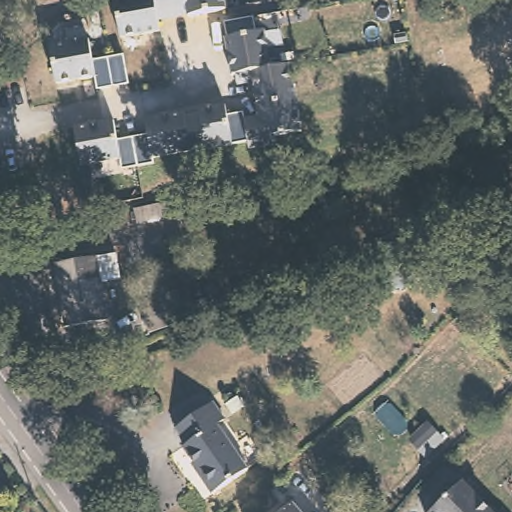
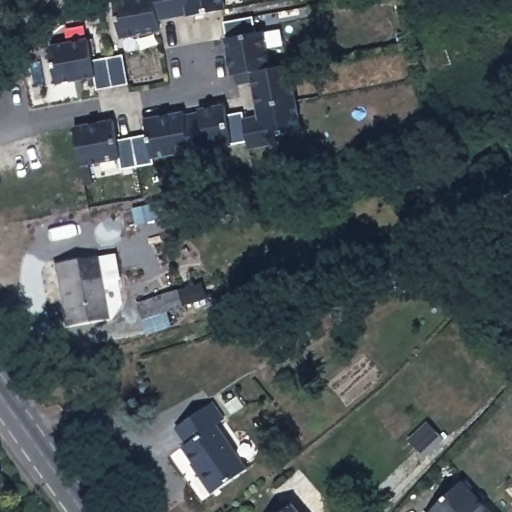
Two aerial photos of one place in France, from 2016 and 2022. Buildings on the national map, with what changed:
unchanged [(171,17),(155,20),(158,31),(119,37),(112,0),(168,0),(171,17)]
unchanged [(222,3),(224,9),(219,9),(187,16),(186,14),(171,17),(168,0),(221,0),(222,3)]
unchanged [(252,16),(255,33),(263,32),(269,67),(234,74),(230,75),(224,37),(225,37),(222,22),(252,16)]
unchanged [(127,84),(111,87),(95,90),(93,77),(63,82),(54,84),(48,47),(86,40),(90,61),(105,57),(121,55),(127,84)]
unchanged [(269,67),(274,66),(288,64),(294,101),(257,108),(251,81),(236,84),(235,82),(234,74),(269,67)]
unchanged [(274,136),(275,144),(248,149),(246,141),(231,144),(225,114),(242,111),(243,119),(258,116),(257,108),(294,101),(300,132),(274,136)]
unchanged [(198,112),(198,109),(206,107),(224,104),(225,114),(231,144),(206,149),(208,155),(190,158),(189,151),(183,115),(198,112)]
unchanged [(147,134),(144,119),(183,112),(183,115),(189,151),(151,158),(152,164),(136,167),(131,137),(147,134)]
unchanged [(111,121),(113,130),(114,140),(131,137),(136,167),(120,170),(118,159),(79,166),(79,162),(75,142),(73,131),(73,127),(111,121)]
unchanged [(111,320),(70,328),(56,266),(96,257),(111,320)]
unchanged [(184,305),(143,317),(138,300),(179,287),(184,305)]
unchanged [(223,413),(214,418),(247,466),(211,488),(198,469),(200,467),(182,439),(187,436),(176,420),(212,396),(223,413)]
unchanged [(483,502),(471,512),(428,512),(464,481),(483,502)]
unchanged [(276,512),(290,500),(300,512),(276,512)]
unchanged [(491,512),(471,512),(483,502),(491,512)]

